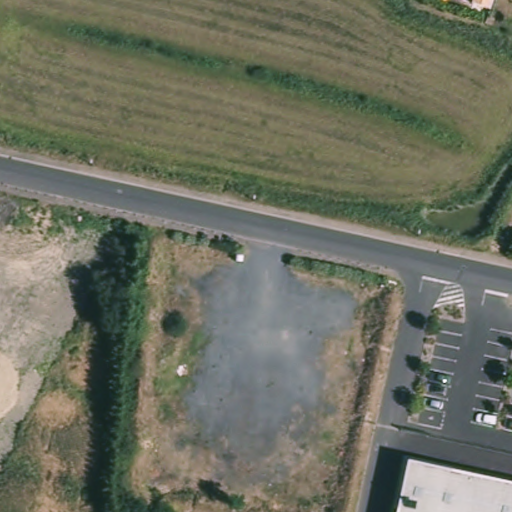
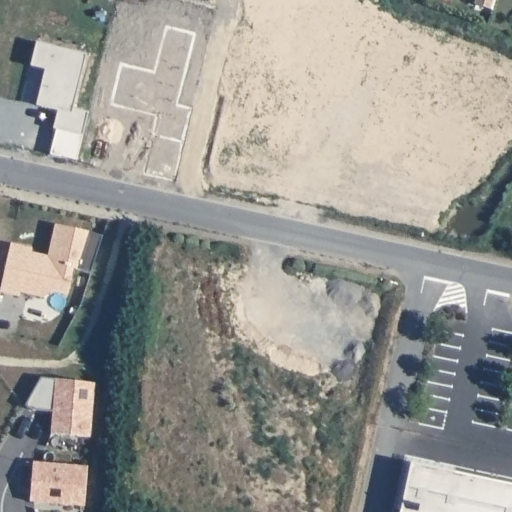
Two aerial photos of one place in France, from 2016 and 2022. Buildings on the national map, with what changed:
new [(52,130),(56,111),(36,106),(44,70),(30,67),(35,43),(85,55),(72,108),(87,112),(82,136),(52,130)]
new [(0,293),(0,286),(10,244),(31,249),(30,253),(47,257),(55,225),(88,232),(102,236),(90,274),(72,269),(67,296),(51,292),(42,298),(26,294),(19,292),(18,297),(0,293)]
new [(52,411),(32,408),(26,405),(42,378),(95,383),(90,437),(50,433),(52,411)]
new [(29,501),(32,461),(87,465),(83,506),(29,501)]
unchanged [(512,488),(512,512),(399,512),(409,466),(512,488)]

